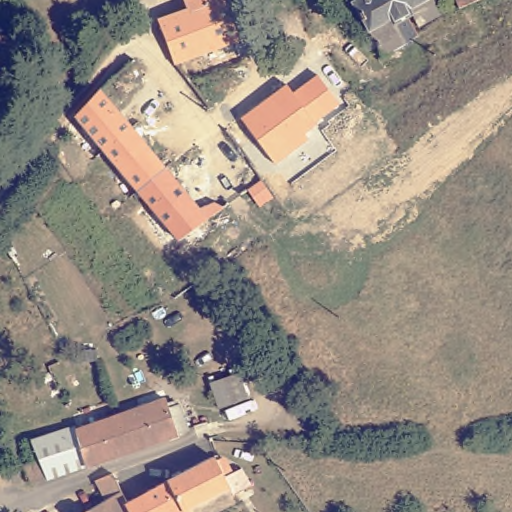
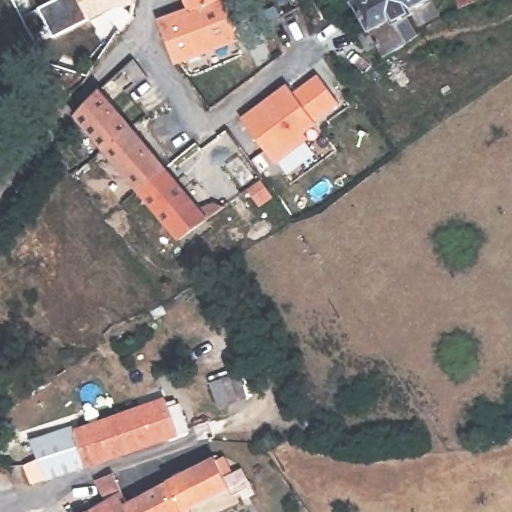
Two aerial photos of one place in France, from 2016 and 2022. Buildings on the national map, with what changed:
new [(55,0),(135,0),(135,4),(113,7),(112,2),(106,4),(86,13),(89,20),(54,37),(39,8),(55,0)]
unchanged [(196,18),(194,15),(189,0),(227,0),(229,5),(196,18)]
unchanged [(432,0),(441,15),(419,27),(412,15),(408,17),(419,36),(386,59),(353,4),(359,0),(432,0)]
unchanged [(477,0),(459,7),(456,0),(477,0)]
unchanged [(244,44),(180,69),(169,37),(164,24),(194,15),(196,18),(229,5),(244,44)]
unchanged [(316,124),(302,136),(304,139),(276,162),(241,115),(287,85),(292,92),(317,76),(341,105),(316,124)]
unchanged [(122,86),(115,92),(109,84),(117,78),(122,86)]
unchanged [(164,162),(204,209),(221,202),(230,207),(185,240),(80,116),(103,90),(164,162)]
unchanged [(242,403),(229,408),(221,382),(234,378),(242,403)]
unchanged [(36,466),(35,461),(40,458),(36,446),(80,431),(82,435),(171,403),(172,407),(178,406),(180,411),(184,410),(192,435),(110,462),(35,488),(28,469),(36,466)]
unchanged [(216,438),(202,442),(198,430),(211,425),(216,438)]
unchanged [(220,460),(231,479),(246,471),(255,488),(239,498),(234,491),(193,512),(135,512),(133,507),(220,460)]
unchanged [(107,507),(98,485),(119,477),(133,507),(135,512),(97,512),(107,507)]

